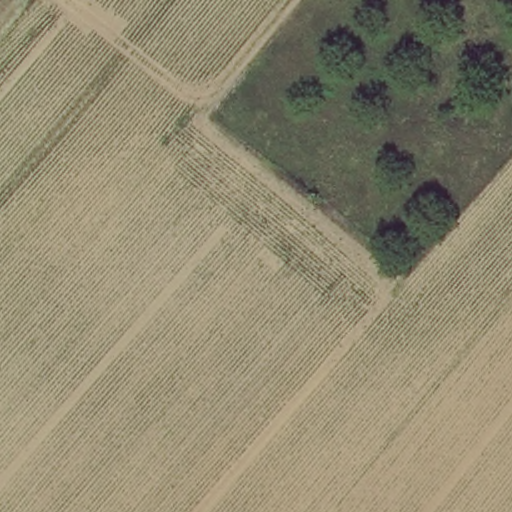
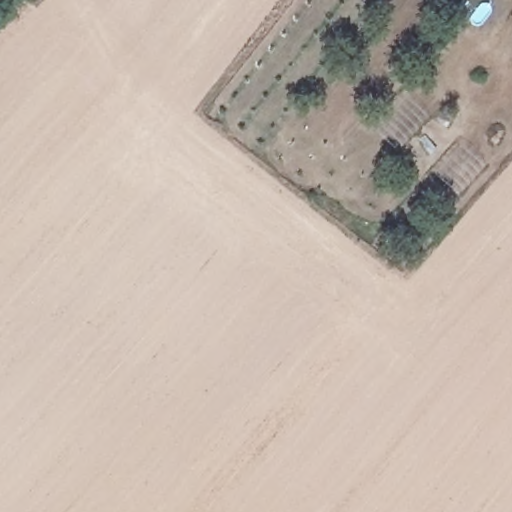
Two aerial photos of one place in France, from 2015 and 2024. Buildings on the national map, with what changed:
unchanged [(506,32),(512,36),(512,79),(502,94),(475,75),(506,32)]

